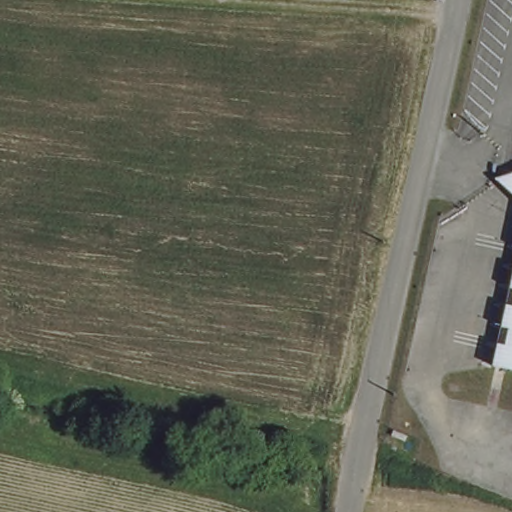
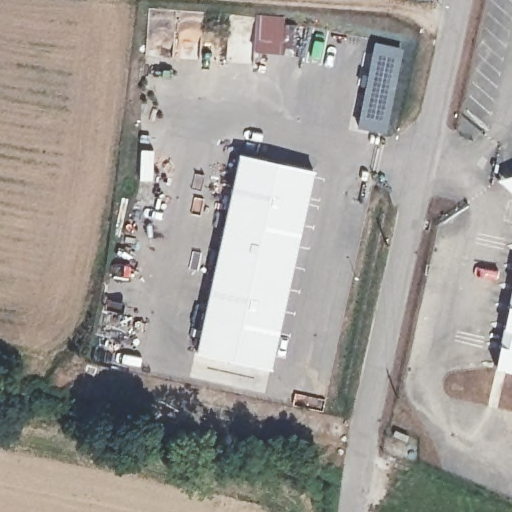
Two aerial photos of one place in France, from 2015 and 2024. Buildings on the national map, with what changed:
new [(360,126),(379,42),(403,47),(384,132),(360,126)]
new [(314,159),(265,394),(186,377),(238,143),(314,159)]
unchanged [(494,371),(512,291),(512,375),(494,371)]

